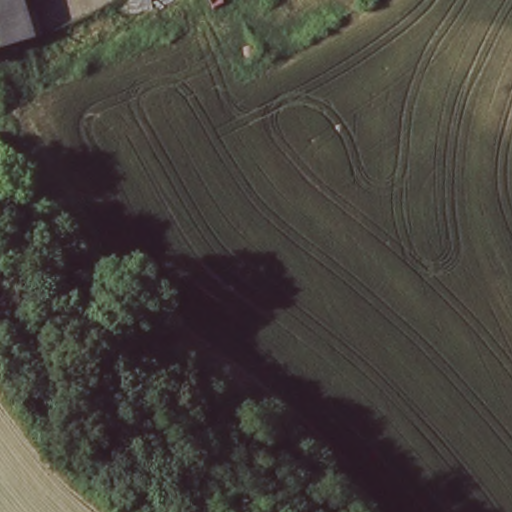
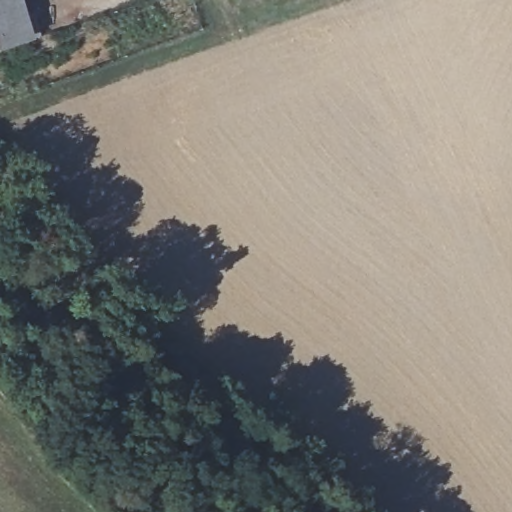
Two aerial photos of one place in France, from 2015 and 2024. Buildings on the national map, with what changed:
unchanged [(0,46),(0,0),(14,0),(26,38),(0,46)]

